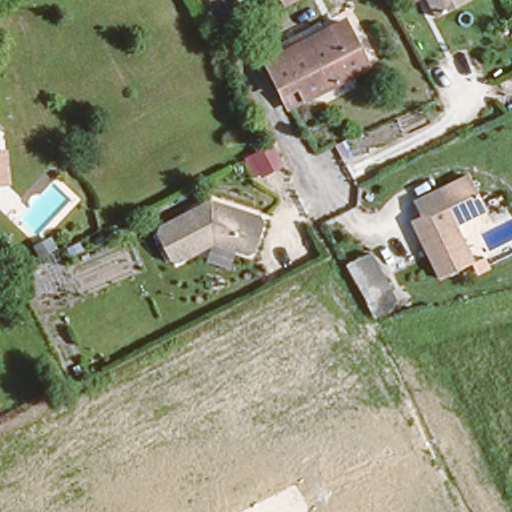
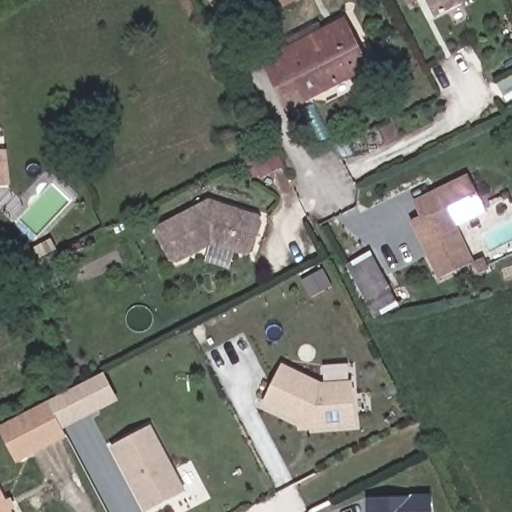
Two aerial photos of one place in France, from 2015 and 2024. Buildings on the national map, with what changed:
unchanged [(428,0),(466,0),(436,16),(428,0)]
unchanged [(277,91),(261,59),(336,17),(360,63),(303,94),(284,105),(277,91)]
unchanged [(262,175),(251,152),(271,143),(284,166),(262,175)]
unchanged [(485,212),(455,226),(473,262),(438,280),(410,220),(419,214),(412,196),(467,171),(485,212)]
unchanged [(205,201),(213,204),(215,210),(221,211),(227,209),(254,217),(257,224),(248,251),(241,254),(209,242),(172,260),(166,257),(154,232),(155,225),(205,201)]
unchanged [(366,244),(396,296),(370,312),(341,258),(366,244)]
new [(282,363),(321,383),(352,380),(355,427),(312,430),(262,405),(282,363)]
new [(0,428),(0,426),(49,401),(72,388),(87,381),(102,373),(114,398),(100,405),(85,413),(61,425),(65,435),(16,460),(0,428)]
new [(151,425),(186,492),(147,512),(144,512),(110,447),(151,425)]
new [(12,512),(0,512),(0,489),(6,500),(10,497),(16,508),(11,511),(12,512)]
new [(432,512),(369,512),(368,497),(431,495),(432,512)]

